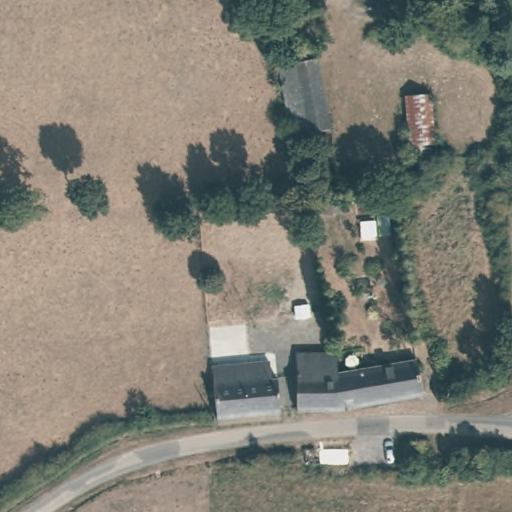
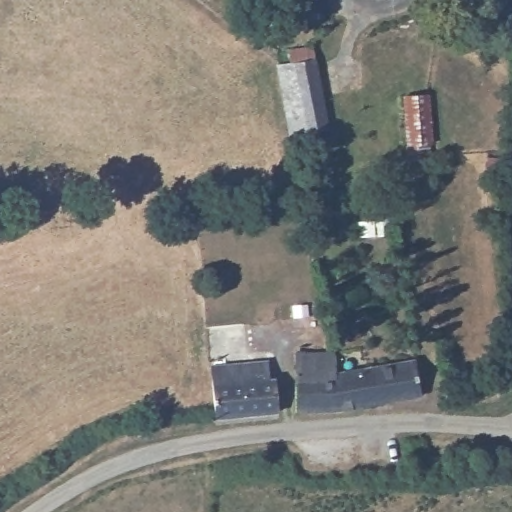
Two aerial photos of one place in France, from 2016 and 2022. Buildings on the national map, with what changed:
unchanged [(319,55),(330,125),(301,128),(302,138),(292,138),(279,67),(319,55)]
unchanged [(427,98),(432,146),(404,148),(399,101),(427,98)]
unchanged [(369,400),(330,410),(305,410),(300,406),(299,372),(297,350),(331,348),(337,348),(338,370),(364,367),(369,400)]
unchanged [(408,360),(412,392),(369,400),(364,367),(408,360)]
unchanged [(269,365),(269,377),(279,378),(279,411),(217,414),(213,364),(269,365)]
unchanged [(425,444),(419,466),(408,463),(415,441),(425,444)]

